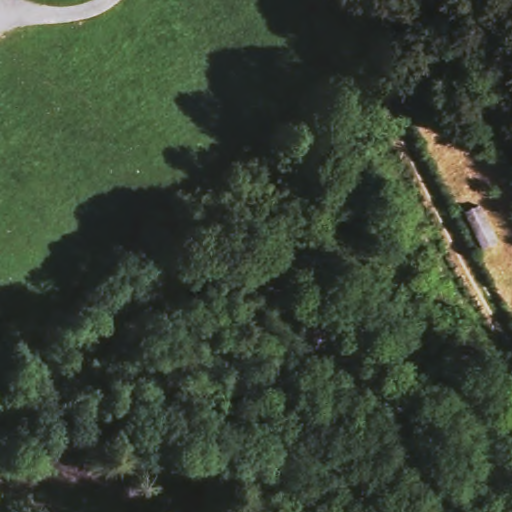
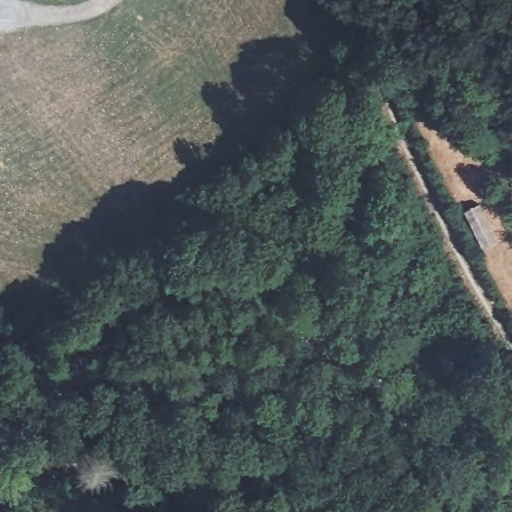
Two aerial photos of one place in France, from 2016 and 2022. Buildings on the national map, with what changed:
unchanged [(477,190),(495,184),(512,222),(512,224),(495,231),(477,190)]

